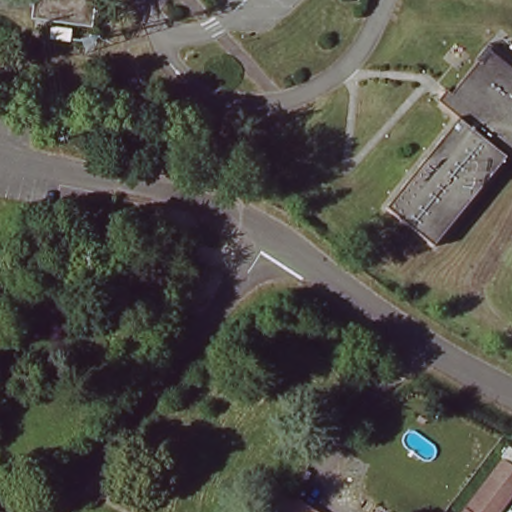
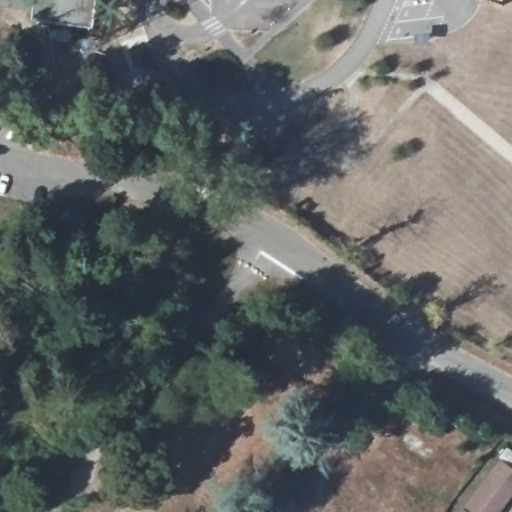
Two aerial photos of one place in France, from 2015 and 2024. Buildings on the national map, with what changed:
unchanged [(32,20),(34,0),(95,0),(93,26),(32,20)]
demolished [(506,157),(432,247),(385,208),(457,119),(436,101),(445,90),(450,93),(476,60),(481,64),(490,54),(511,70),(512,70),(512,69),(512,156),(509,160),(506,157)]
unchanged [(502,460),(512,468),(512,495),(499,512),(462,512),(502,460)]
unchanged [(288,494),(313,512),(275,512),(288,494)]

